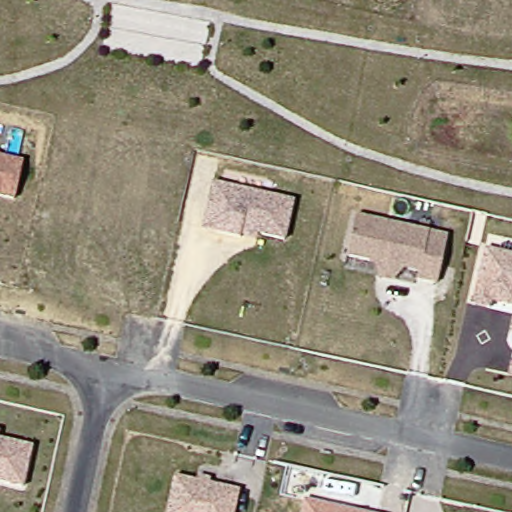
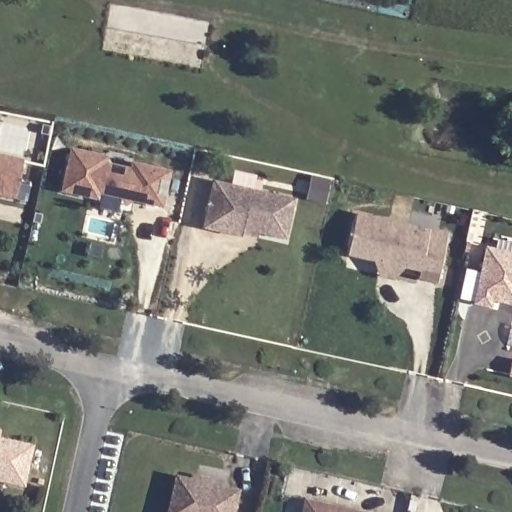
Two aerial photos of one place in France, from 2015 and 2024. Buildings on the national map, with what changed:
new [(163,213),(133,206),(125,210),(120,204),(100,198),(99,205),(60,196),(70,150),(109,158),(108,166),(129,171),(131,164),(171,173),(163,213)]
unchanged [(23,162),(15,200),(0,197),(0,157),(23,162)]
unchanged [(297,198),(287,238),(245,228),(243,235),(205,226),(216,179),(297,198)]
unchanged [(381,275),(382,267),(383,262),(348,254),(358,212),(449,234),(438,283),(418,278),(419,271),(404,267),(399,271),(394,278),(381,275)]
unchanged [(493,301),(491,308),(474,304),(488,247),(512,253),(512,306),(509,305),(493,301)]
unchanged [(30,443),(21,484),(0,480),(0,437),(30,443)]
unchanged [(177,474),(240,490),(235,512),(168,512),(177,474)]
unchanged [(309,503),(348,511),(352,512),(307,512),(309,503)]

